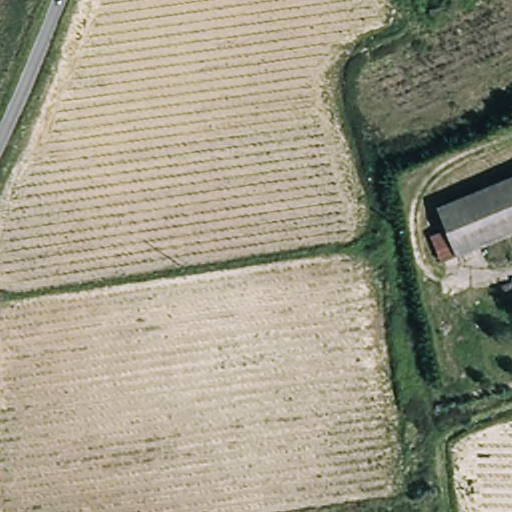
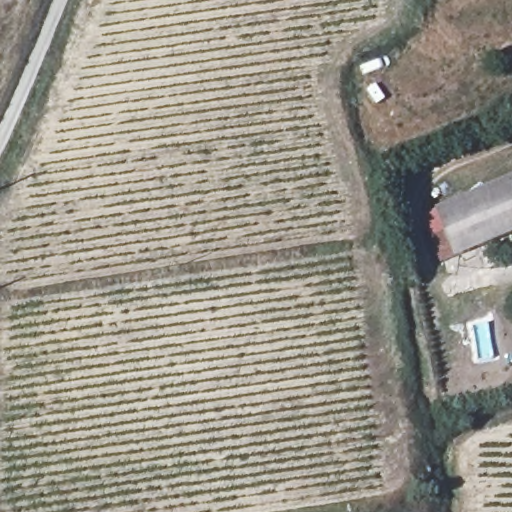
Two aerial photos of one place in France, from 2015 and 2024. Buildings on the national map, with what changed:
unchanged [(431,227),(445,221),(436,200),(512,168),(512,224),(442,253),(431,227)]

